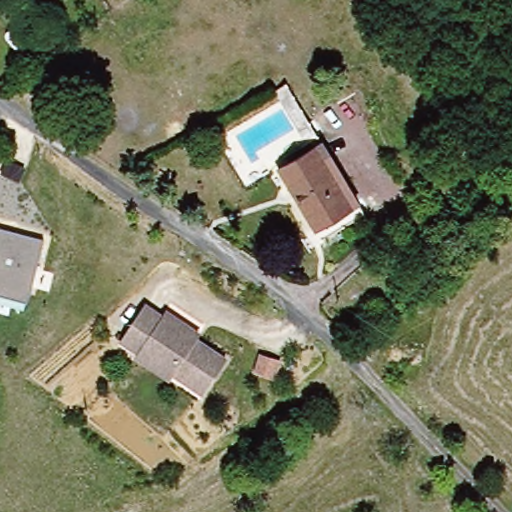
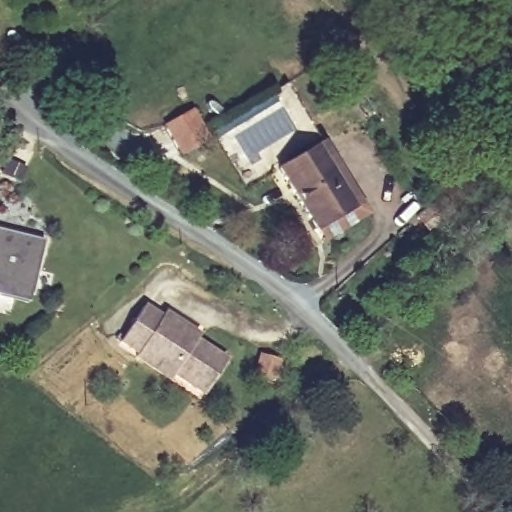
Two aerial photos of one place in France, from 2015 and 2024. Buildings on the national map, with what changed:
new [(191,108),(208,135),(180,151),(164,125),(191,108)]
unchanged [(326,233),(284,164),(318,144),(361,212),(326,233)]
unchanged [(43,242),(26,303),(0,297),(0,231),(43,242)]
unchanged [(130,356),(132,352),(114,340),(138,305),(156,316),(158,311),(193,333),(189,338),(221,357),(198,393),(168,374),(165,378),(130,356)]
unchanged [(281,360),(276,380),(255,374),(261,354),(281,360)]

